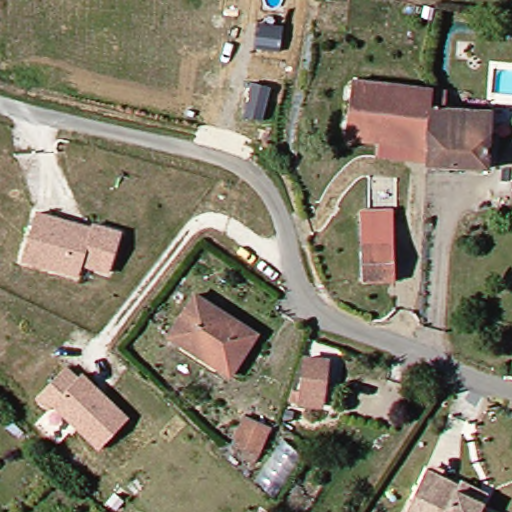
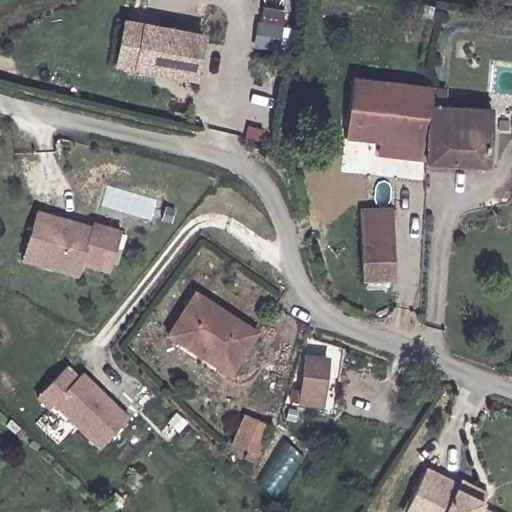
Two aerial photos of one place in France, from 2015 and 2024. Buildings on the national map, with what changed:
new [(125,20),(143,23),(206,35),(197,84),(135,73),(115,69),(125,20)]
unchanged [(425,143),(345,132),(353,77),(430,88),(425,143)]
unchanged [(425,143),(430,88),(450,91),(447,105),(496,112),(490,166),(423,159),(425,143)]
unchanged [(364,241),(363,208),(393,206),(395,240),(364,241)]
unchanged [(126,236),(111,274),(85,265),(80,277),(26,258),(41,209),(57,215),(96,228),(98,225),(126,236)]
unchanged [(395,240),(395,280),(363,281),(364,241),(395,240)]
unchanged [(234,368),(170,329),(194,288),(258,326),(234,368)]
unchanged [(322,403),(303,401),(309,358),(327,359),(322,403)]
unchanged [(128,422),(95,450),(57,401),(52,407),(40,392),(70,366),(80,378),(85,374),(128,422)]
unchanged [(276,423),(263,453),(233,443),(249,413),(276,423)]
unchanged [(405,512),(413,496),(428,465),(463,481),(465,477),(490,489),(485,499),(483,505),(498,512),(406,512),(405,512)]

